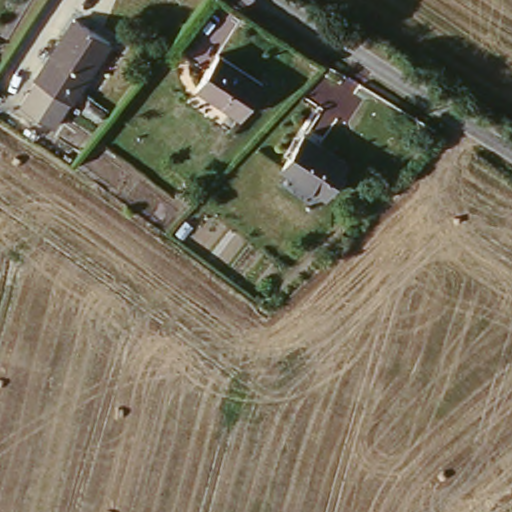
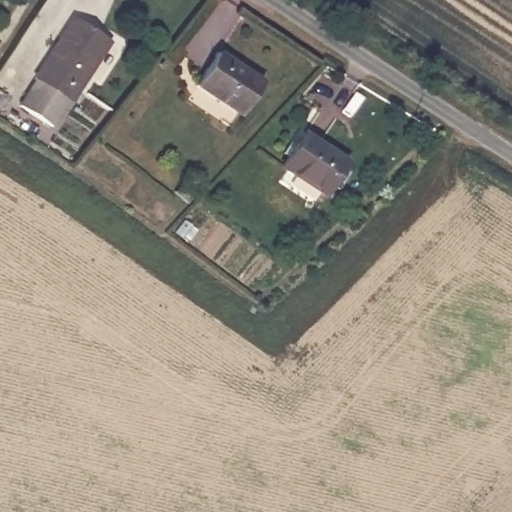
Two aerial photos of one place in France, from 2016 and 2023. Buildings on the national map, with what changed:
unchanged [(113,40),(61,130),(26,109),(76,17),(113,40)]
unchanged [(261,83),(239,111),(195,78),(218,50),(261,83)]
unchanged [(348,161),(325,190),(284,158),(306,130),(348,161)]

